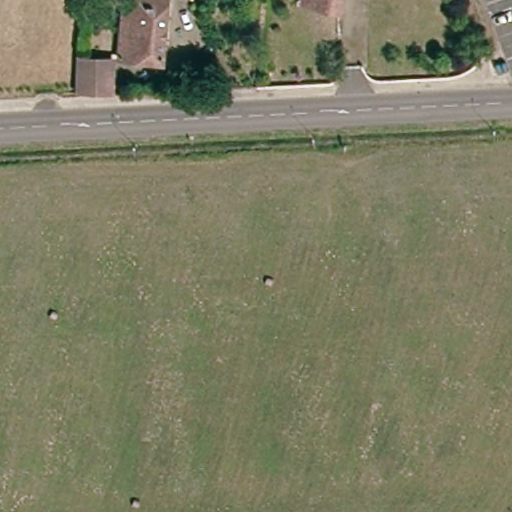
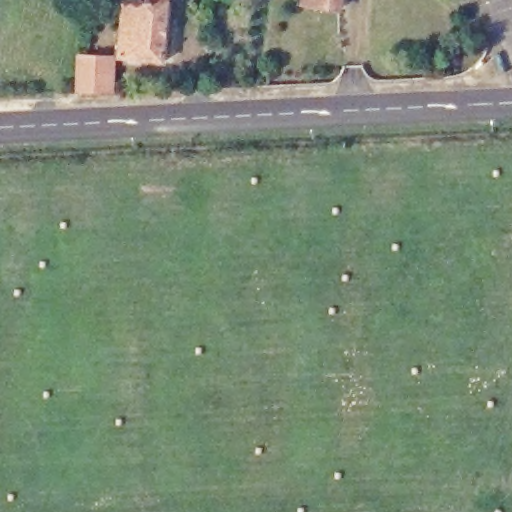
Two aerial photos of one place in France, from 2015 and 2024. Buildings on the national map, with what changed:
unchanged [(168,0),(161,58),(120,54),(126,0),(168,0)]
unchanged [(314,6),(315,0),(340,0),(338,10),(314,6)]
unchanged [(83,90),(82,56),(113,55),(114,88),(83,90)]

